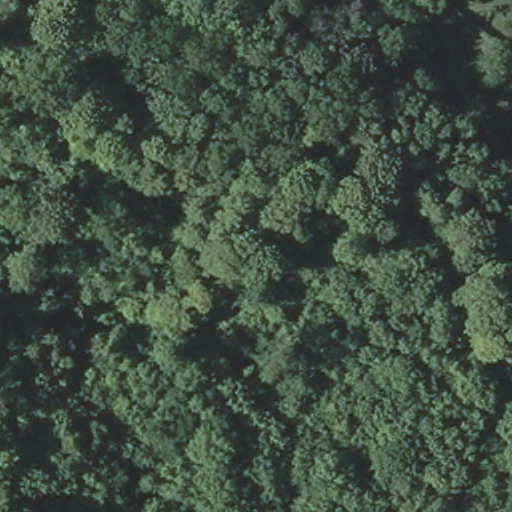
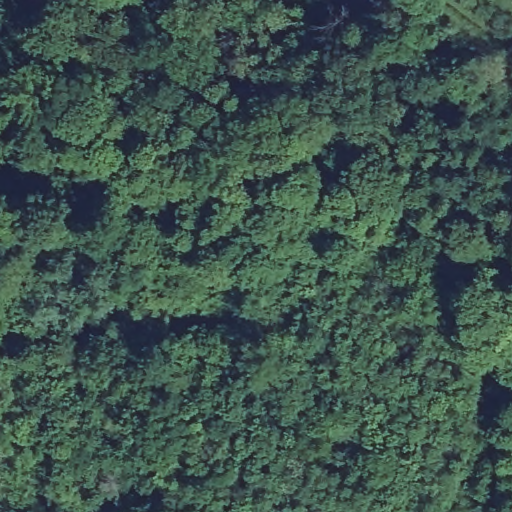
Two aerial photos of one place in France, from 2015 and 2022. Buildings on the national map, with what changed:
[]

